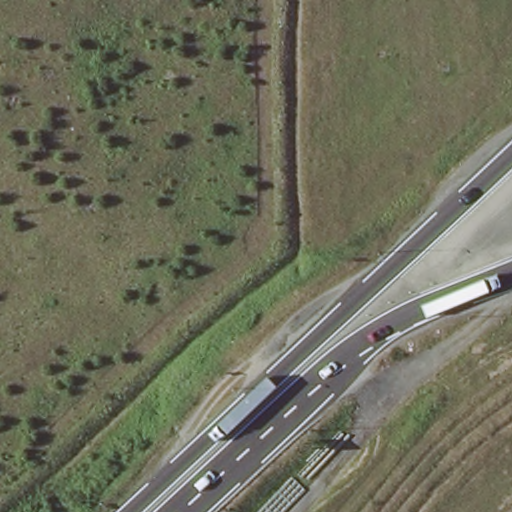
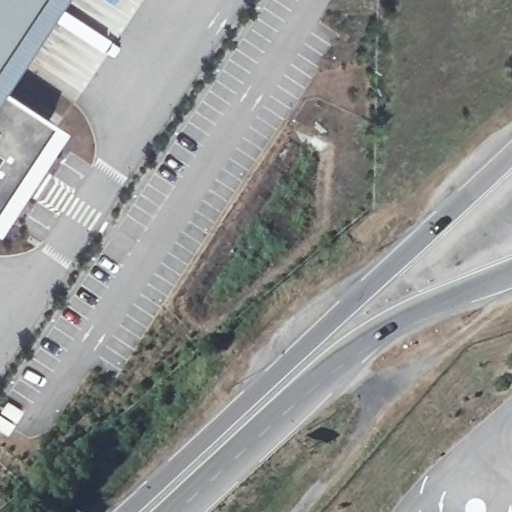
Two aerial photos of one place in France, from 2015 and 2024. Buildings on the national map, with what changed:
new [(0,78),(0,0),(51,0),(0,78)]
new [(61,125),(0,217),(0,85),(61,125)]

